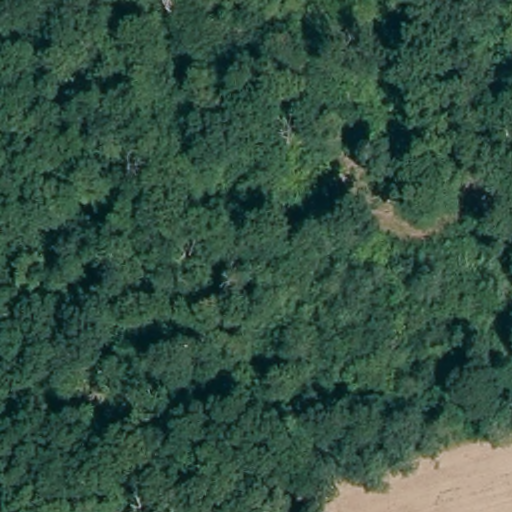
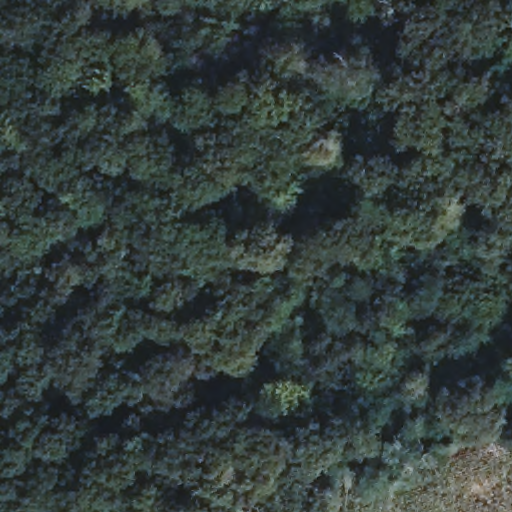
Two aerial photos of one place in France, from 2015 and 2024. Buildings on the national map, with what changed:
[]

